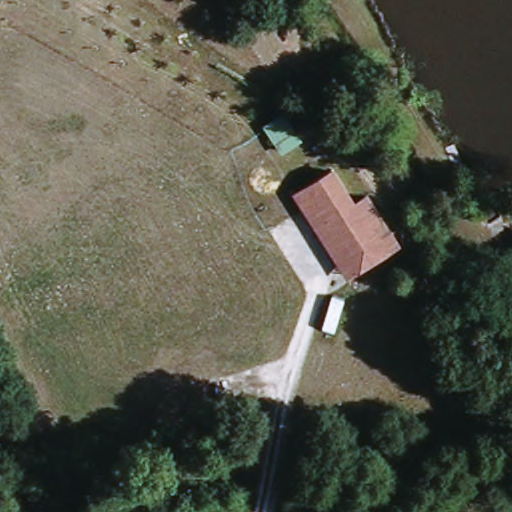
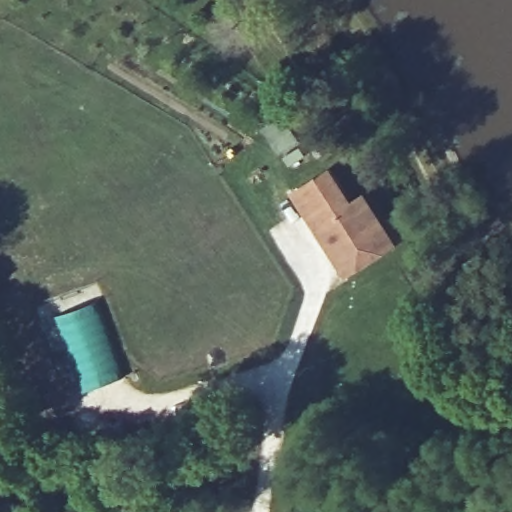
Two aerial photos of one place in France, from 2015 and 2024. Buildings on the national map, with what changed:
unchanged [(295,194),(331,171),(353,205),(373,239),(337,262),(295,194)]
unchanged [(337,262),(373,239),(353,205),(364,197),(395,243),(345,274),(337,262)]
new [(125,375),(83,391),(56,316),(96,301),(125,375)]

